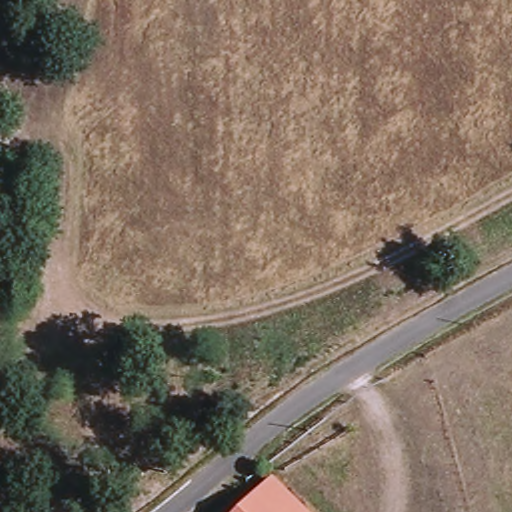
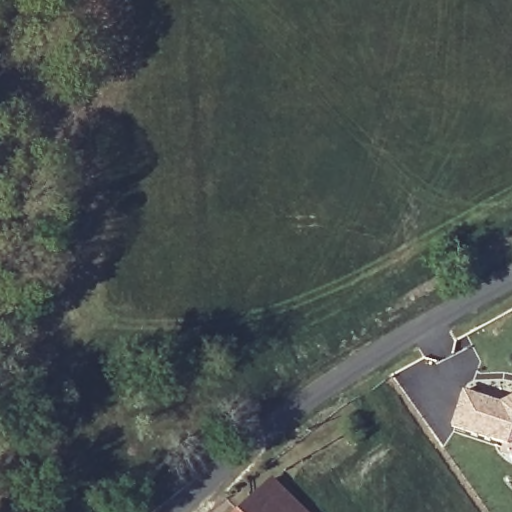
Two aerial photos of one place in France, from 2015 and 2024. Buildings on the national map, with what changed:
new [(511,444),(454,424),(466,390),(502,402),(512,397),(512,444),(511,444)]
unchanged [(261,488),(284,512),(235,512),(261,488)]

